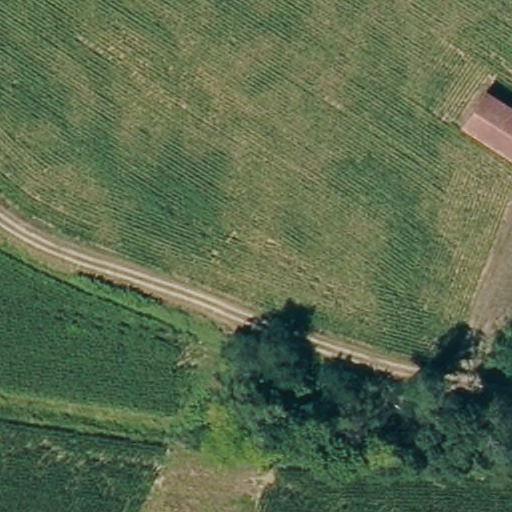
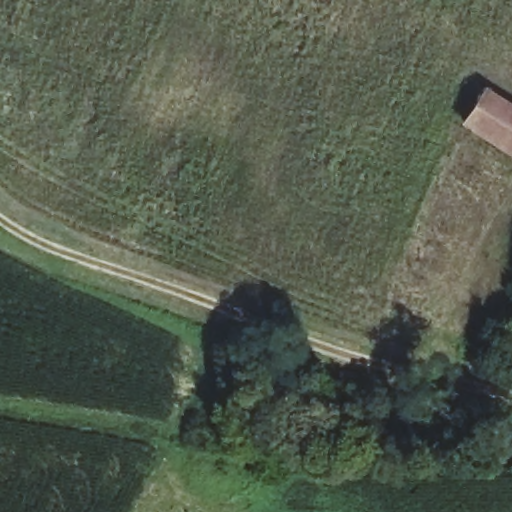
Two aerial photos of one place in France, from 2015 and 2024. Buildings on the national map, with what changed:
unchanged [(512,110),(512,158),(464,126),(487,93),(512,110)]

